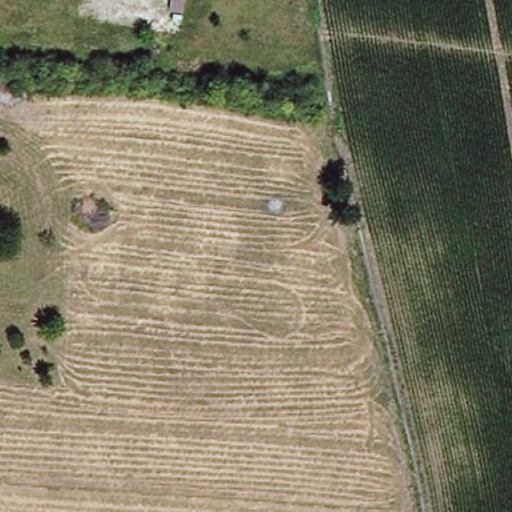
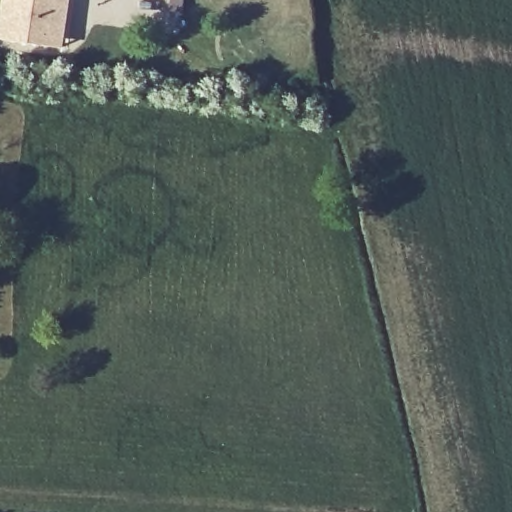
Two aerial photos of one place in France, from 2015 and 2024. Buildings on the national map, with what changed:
new [(57,47),(42,44),(0,39),(0,2),(0,0),(64,0),(57,47)]

